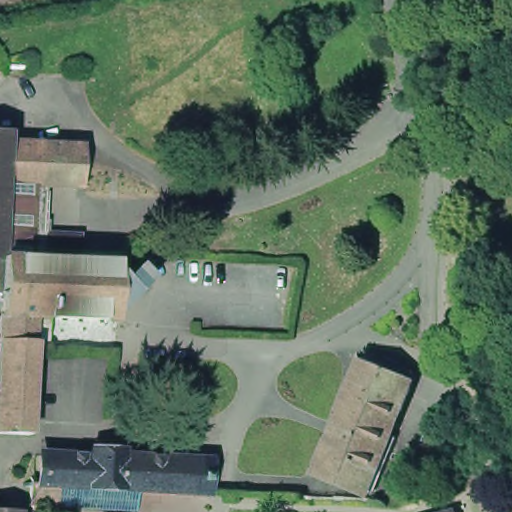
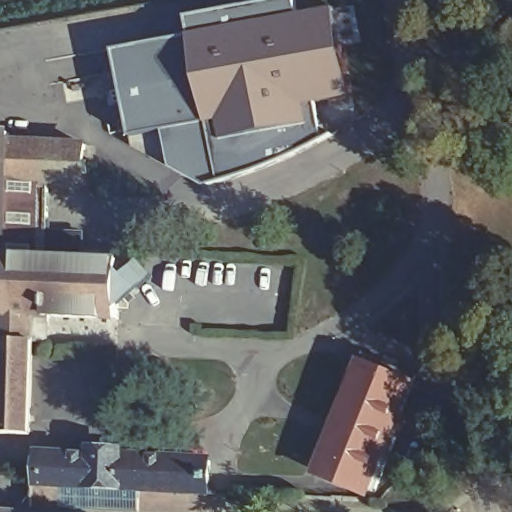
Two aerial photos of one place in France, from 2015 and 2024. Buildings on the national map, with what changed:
new [(345,9),(361,96),(322,102),(327,139),(308,149),(227,180),(210,186),(177,166),(170,129),(138,135),(125,50),(202,35),(198,14),(277,0),(307,0),(308,12),(345,9)]
unchanged [(119,323),(50,320),(2,318),(2,306),(0,305),(0,124),(1,124),(1,137),(11,137),(11,145),(53,146),(52,186),(51,186),(47,262),(122,266),(119,323)]
unchanged [(86,147),(84,188),(52,186),(53,146),(86,147)]
unchanged [(48,346),(35,345),(31,438),(0,438),(0,371),(2,318),(50,320),(48,346)]
unchanged [(395,427),(388,425),(379,447),(388,452),(367,504),(360,505),(315,486),(355,387),(349,386),(356,368),(410,390),(395,427)]
unchanged [(457,438),(440,480),(411,468),(427,427),(457,438)]
unchanged [(34,483),(33,502),(32,503),(8,502),(10,479),(41,481),(42,451),(92,452),(92,447),(124,448),(123,452),(121,486),(34,483)]
unchanged [(123,452),(194,455),(194,456),(212,457),(211,490),(206,490),(205,495),(197,495),(197,489),(140,487),(121,486),(123,452)]
unchanged [(140,487),(139,507),(33,502),(34,483),(121,486),(140,487)]

